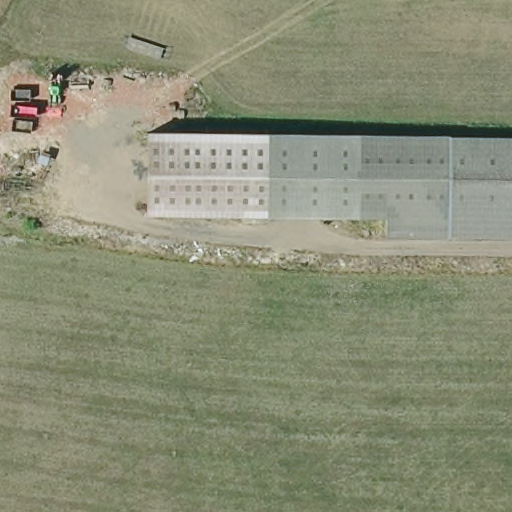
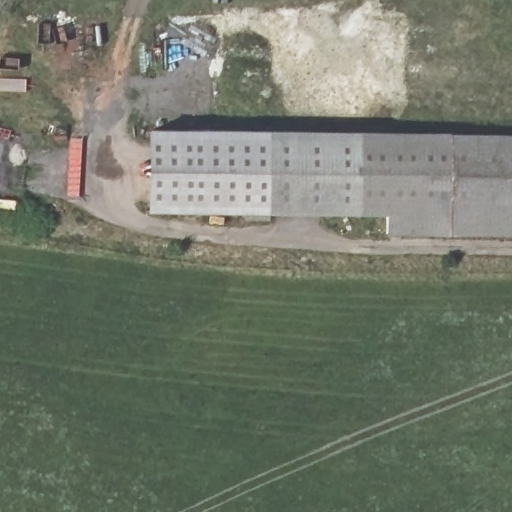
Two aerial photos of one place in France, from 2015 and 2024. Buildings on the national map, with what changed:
unchanged [(144,217),(146,132),(265,134),(267,218),(144,217)]
unchanged [(267,218),(265,134),(352,132),(350,217),(267,218)]
unchanged [(350,222),(350,217),(352,132),(445,137),(446,237),(350,222)]
unchanged [(512,138),(512,239),(446,237),(445,137),(512,138)]

